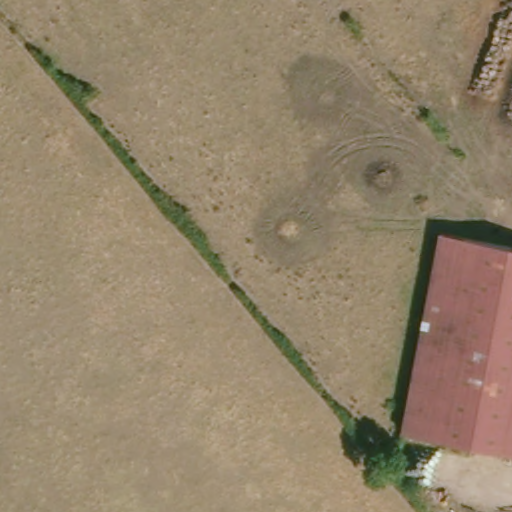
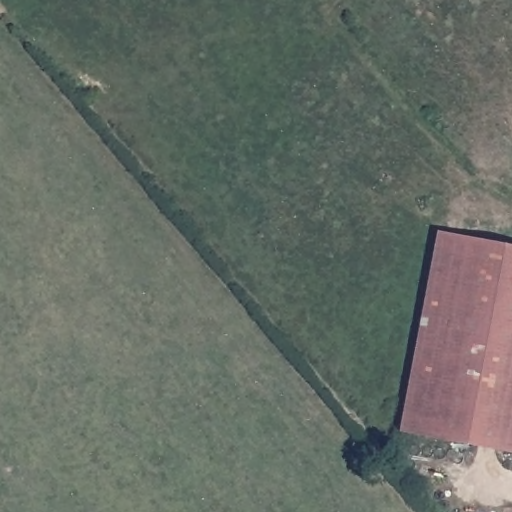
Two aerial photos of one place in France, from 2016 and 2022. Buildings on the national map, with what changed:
unchanged [(512,246),(512,453),(404,430),(438,232),(512,246)]

